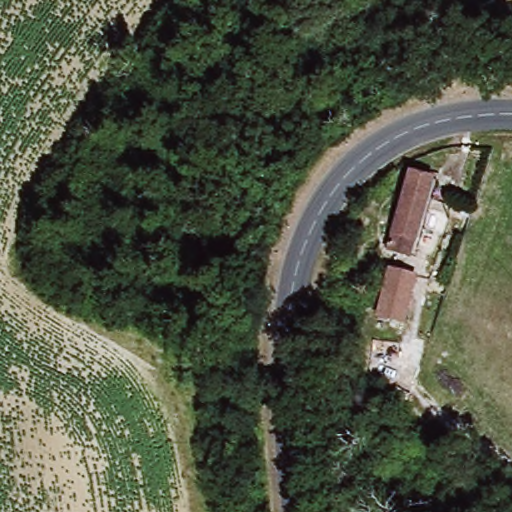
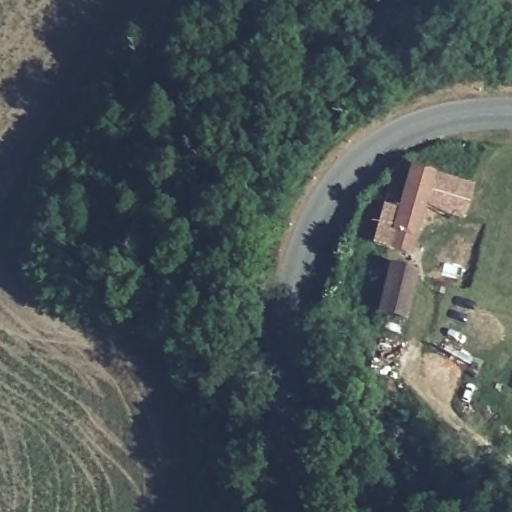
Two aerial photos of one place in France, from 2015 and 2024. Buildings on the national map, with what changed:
unchanged [(409,259),(386,254),(409,173),(431,179),(409,259)]
unchanged [(380,315),(394,267),(419,274),(405,323),(380,315)]

